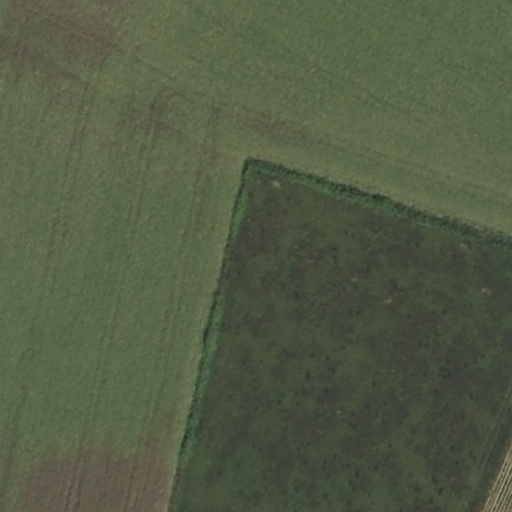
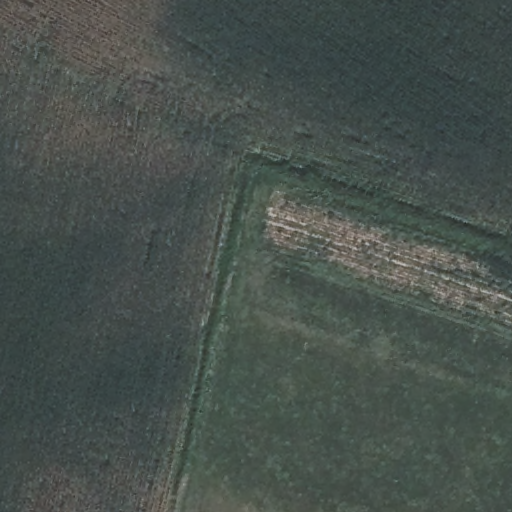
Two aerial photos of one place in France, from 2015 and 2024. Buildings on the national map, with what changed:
[]

